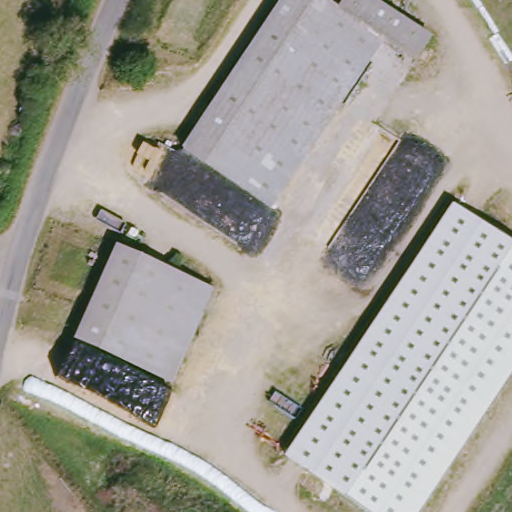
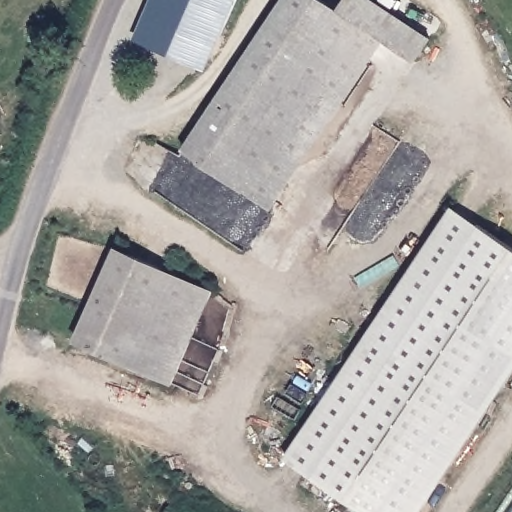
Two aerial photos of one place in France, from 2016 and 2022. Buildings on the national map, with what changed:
new [(156,0),(225,0),(207,44),(148,19),(156,0)]
unchanged [(392,40),(281,211),(192,151),(290,0),(326,0),(349,15),(350,12),(392,40)]
unchanged [(358,0),(380,0),(438,39),(423,61),(392,40),(350,12),(358,0)]
new [(207,44),(197,67),(138,42),(148,19),(207,44)]
unchanged [(512,245),(512,377),(421,512),(368,512),(286,458),(455,206),(512,245)]
unchanged [(82,337),(121,249),(215,292),(177,381),(82,337)]

